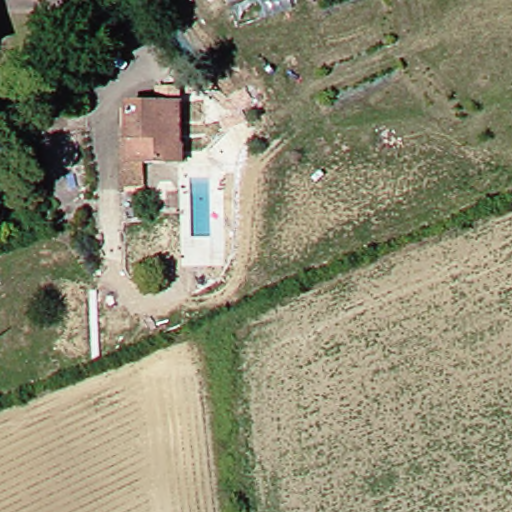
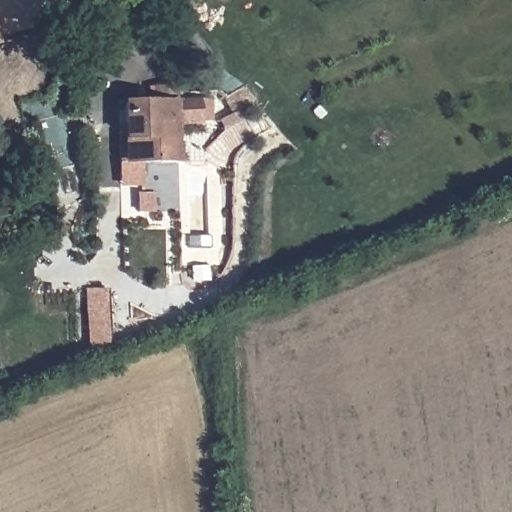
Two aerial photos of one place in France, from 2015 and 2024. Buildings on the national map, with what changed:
unchanged [(130,105),(161,105),(162,92),(184,92),(187,145),(189,158),(134,164),(130,136),(130,105)]
unchanged [(149,180),(148,189),(124,190),(119,138),(130,136),(134,164),(189,158),(191,177),(149,180)]
demolished [(5,157),(8,168),(0,170),(0,158),(5,157)]
new [(109,290),(111,359),(90,360),(87,290),(109,290)]

